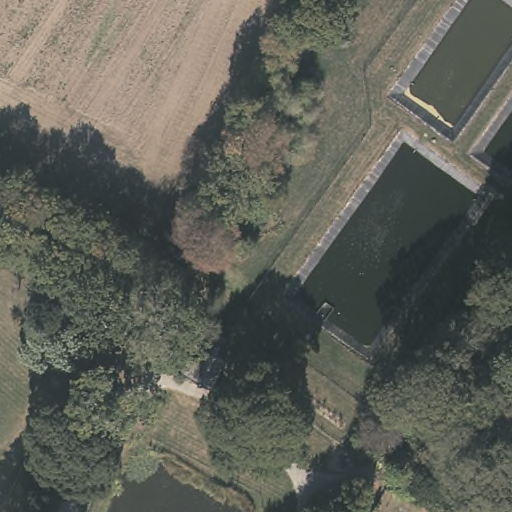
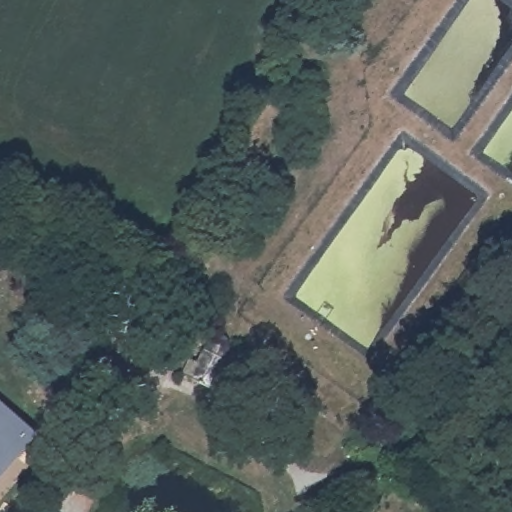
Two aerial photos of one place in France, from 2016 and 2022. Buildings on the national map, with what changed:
unchanged [(222,323),(229,326),(231,332),(232,338),(214,378),(184,366),(191,348),(199,352),(211,325),(216,323),(222,323)]
new [(0,474),(0,400),(38,432),(0,474)]
unchanged [(385,489),(378,501),(367,495),(373,483),(385,489)]

